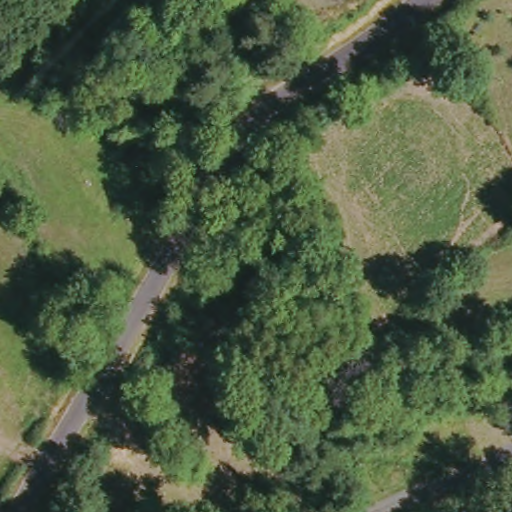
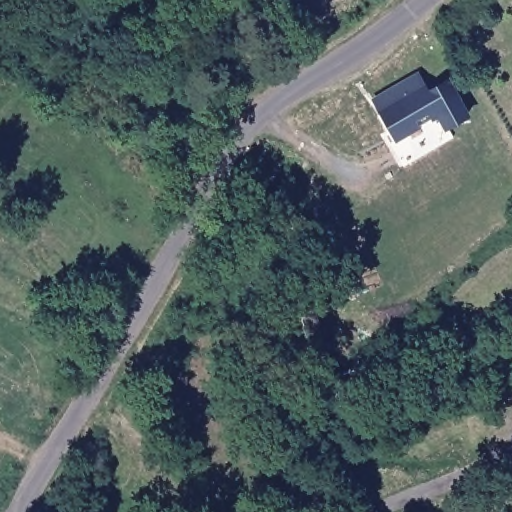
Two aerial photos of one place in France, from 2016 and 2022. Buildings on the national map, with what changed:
new [(372,99),(417,72),(427,88),(449,78),(470,116),(447,129),(437,117),(433,120),(431,117),(419,124),(420,128),(395,141),(372,99)]

